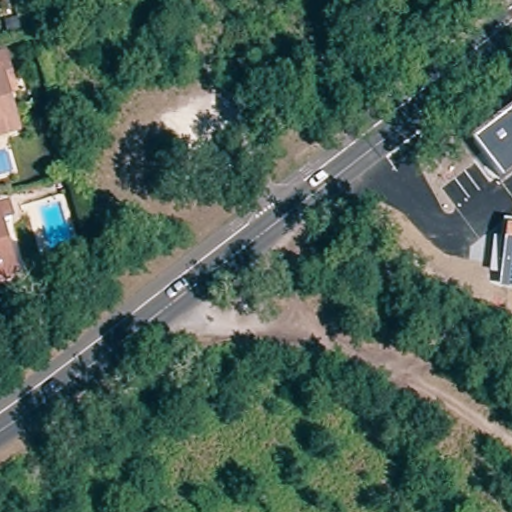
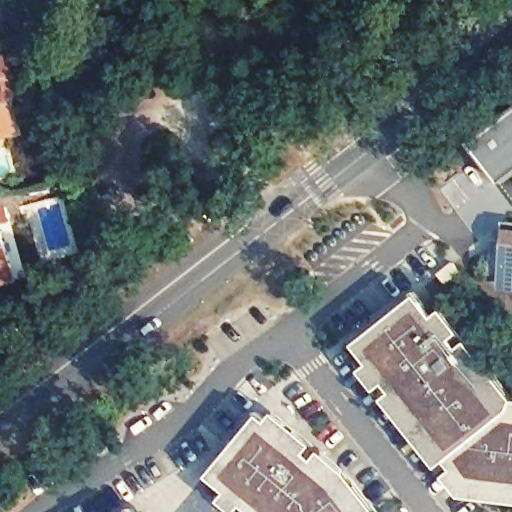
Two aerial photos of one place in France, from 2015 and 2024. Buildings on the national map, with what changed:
unchanged [(10,99),(3,102),(14,137),(0,142),(0,67),(5,83),(10,99)]
unchanged [(501,182),(471,142),(512,110),(512,174),(501,182)]
unchanged [(0,210),(9,208),(14,225),(3,227),(14,270),(18,282),(0,286),(0,210)]
unchanged [(512,222),(512,290),(499,289),(500,275),(489,273),(494,237),(502,239),(504,221),(512,222)]
new [(439,317),(447,311),(512,391),(512,503),(465,497),(366,371),(375,365),(359,346),(423,296),(439,317)]
new [(233,493),(213,477),(264,416),(272,422),(279,412),(351,473),(379,508),(381,512),(238,512),(225,502),(233,493)]

